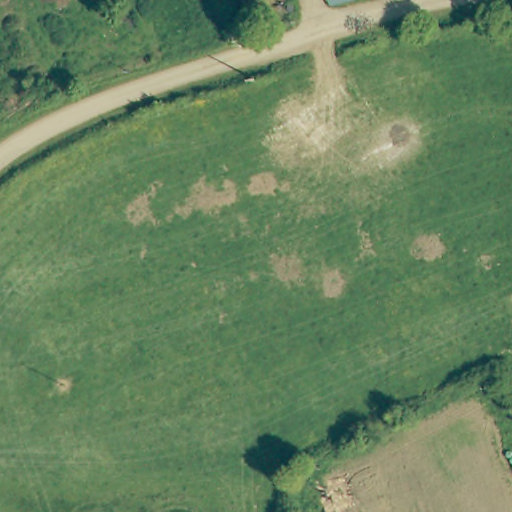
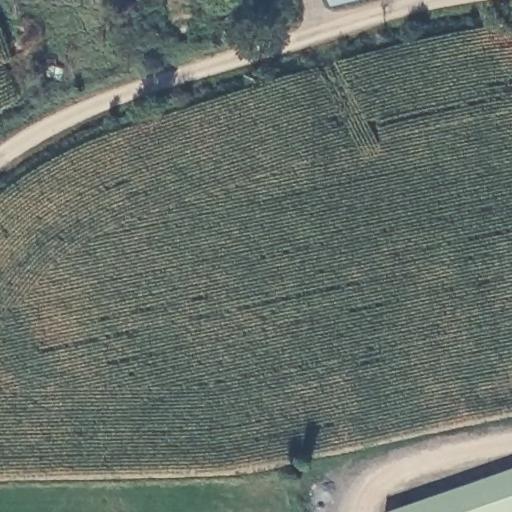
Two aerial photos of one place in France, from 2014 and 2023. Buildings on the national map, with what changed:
unchanged [(331,0),(349,0),(332,5),(331,0)]
new [(512,470),(512,512),(391,512),(512,470)]

